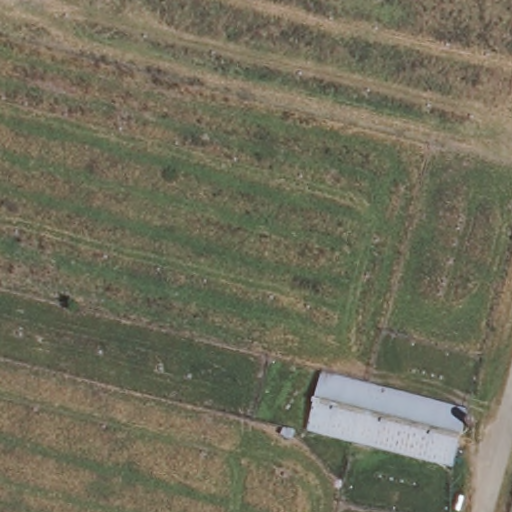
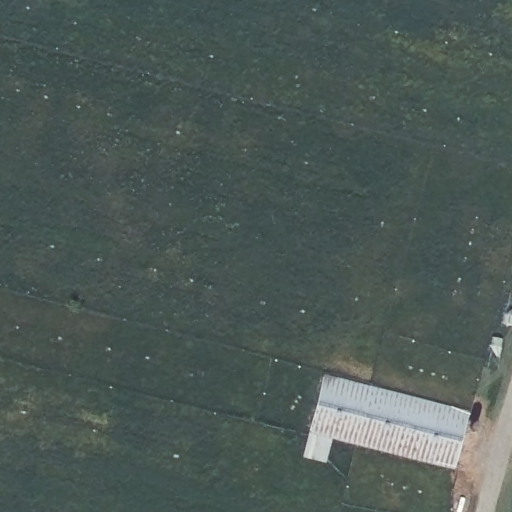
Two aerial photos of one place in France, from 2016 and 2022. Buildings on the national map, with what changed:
unchanged [(468,414),(454,467),(308,430),(322,377),(468,414)]

